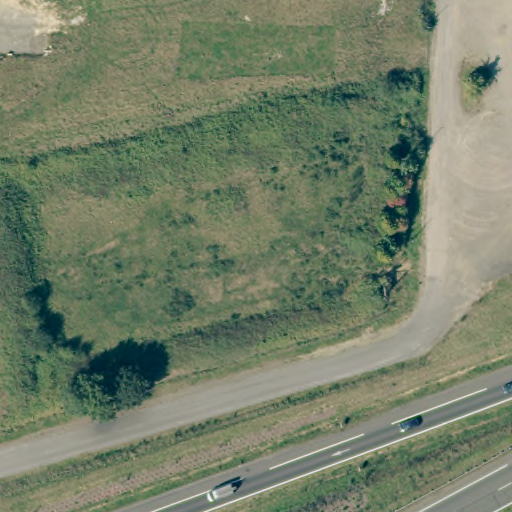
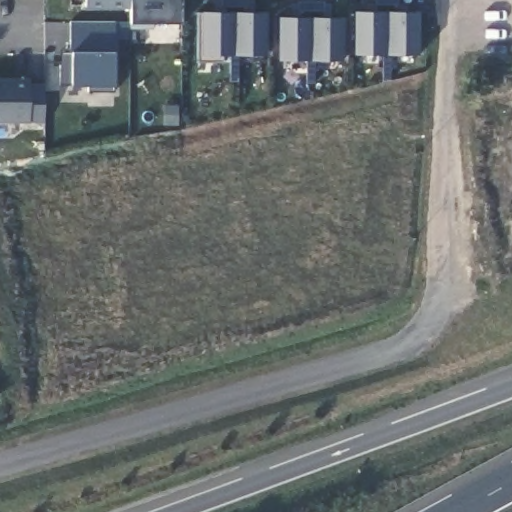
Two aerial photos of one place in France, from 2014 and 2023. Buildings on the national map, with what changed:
new [(85,9),(85,0),(130,0),(130,8),(85,9)]
new [(152,23),(152,29),(130,29),(130,0),(182,0),(181,23),(152,23)]
new [(198,11),(266,11),(265,56),(223,55),(222,63),(197,62),(198,11)]
new [(419,12),(418,55),(353,55),(353,11),(419,12)]
new [(343,16),(342,60),(277,60),(279,16),(343,16)]
new [(130,29),(130,38),(112,39),(115,53),(112,93),(89,93),(90,85),(70,85),(60,85),(60,52),(72,51),(71,23),(115,22),(130,21),(130,29)]
new [(29,84),(44,85),(43,123),(0,122),(0,78),(29,79),(29,84)]

